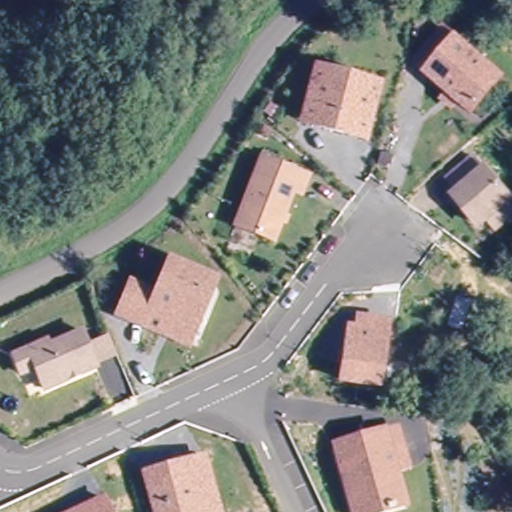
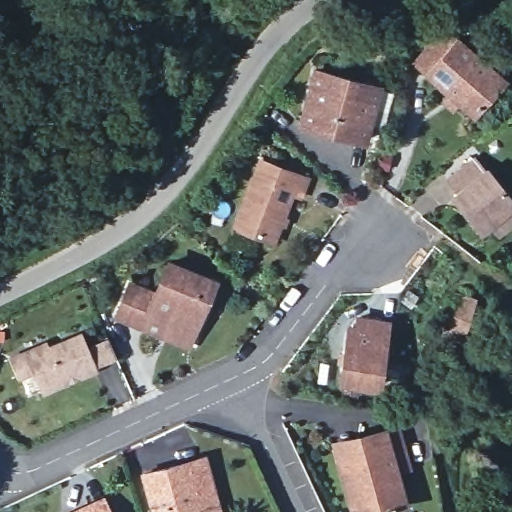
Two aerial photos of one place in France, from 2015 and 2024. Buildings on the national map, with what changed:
unchanged [(472,112),(415,62),(443,29),(501,79),(472,112)]
unchanged [(350,136),(313,127),(300,122),(304,104),(313,69),(377,86),(367,121),(363,140),(350,136)]
unchanged [(305,176),(297,196),(290,192),(272,242),(233,227),(259,159),(305,176)]
unchanged [(489,225),(481,231),(456,201),(460,197),(448,185),(473,164),(484,177),(486,176),(512,206),(507,209),(512,215),(512,223),(497,235),(489,225)]
unchanged [(147,331),(120,320),(133,289),(159,300),(172,267),(212,283),(199,316),(204,317),(196,336),(191,349),(147,331)]
unchanged [(376,385),(340,379),(347,328),(355,328),(356,318),(368,320),(386,322),(376,385)]
unchanged [(28,375),(14,381),(6,362),(39,348),(42,353),(74,338),(89,373),(37,396),(28,375)]
unchanged [(402,447),(406,446),(411,466),(398,469),(408,504),(380,512),(358,512),(344,462),(339,445),(360,438),(397,428),(402,447)]
unchanged [(139,474),(199,457),(207,487),(214,512),(149,512),(139,474)]
unchanged [(103,512),(68,512),(97,498),(103,512)]

